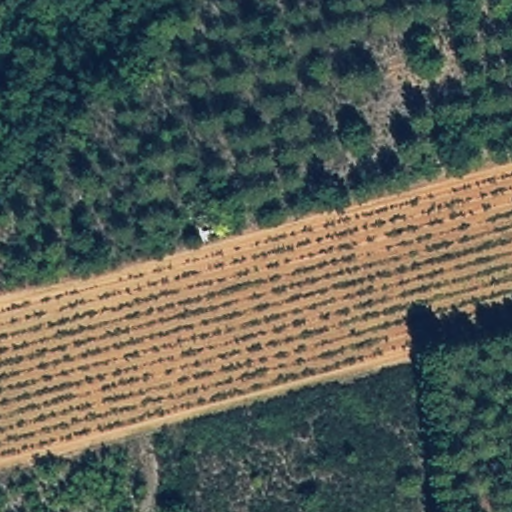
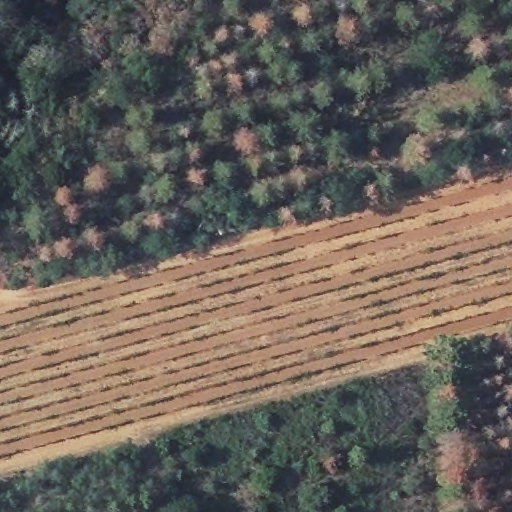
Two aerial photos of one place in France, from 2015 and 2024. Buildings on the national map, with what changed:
unchanged [(220,234),(202,241),(198,222),(217,216),(220,234)]

